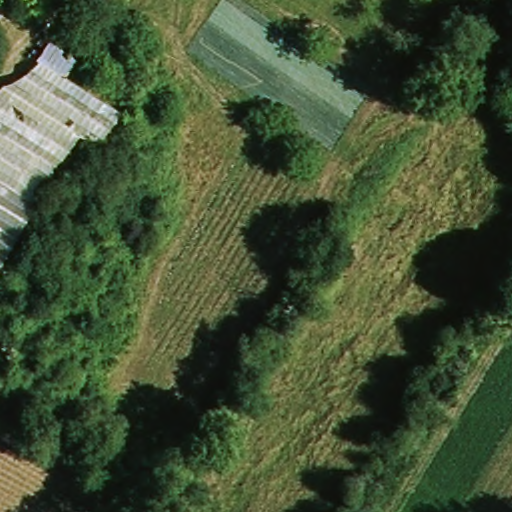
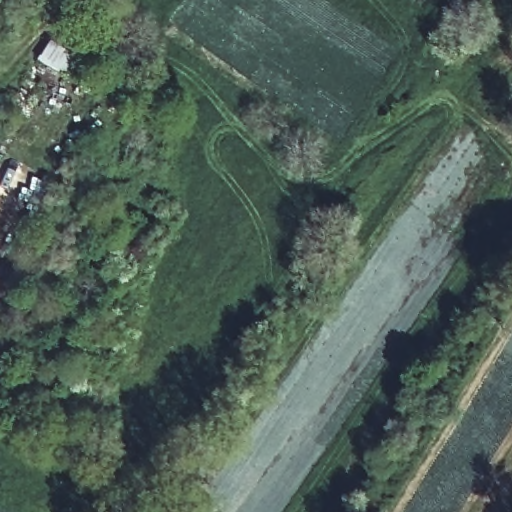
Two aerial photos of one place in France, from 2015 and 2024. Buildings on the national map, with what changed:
demolished [(51,39),(77,55),(63,75),(119,107),(96,141),(78,132),(0,262),(0,92),(28,76),(51,39)]
unchanged [(244,395),(245,403),(241,407),(233,407),(229,403),(229,395),(233,392),(241,391),(244,395)]

